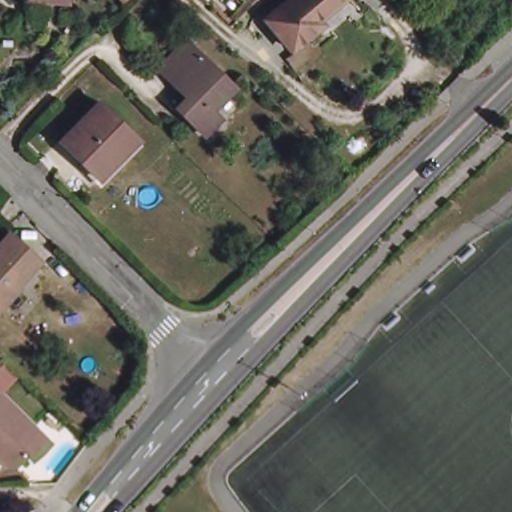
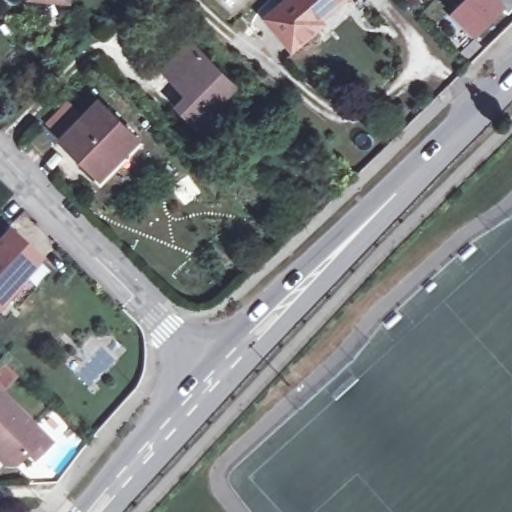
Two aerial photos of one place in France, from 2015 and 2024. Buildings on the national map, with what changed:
unchanged [(315,17),(319,23),(290,47),(265,16),(284,0),(334,0),(315,17)]
new [(463,0),(512,0),(512,6),(507,12),(501,7),(474,34),(470,38),(447,16),(452,12),(463,0)]
unchanged [(205,107),(214,115),(199,132),(172,105),(182,95),(153,67),(181,38),(227,84),(205,107)]
unchanged [(97,175),(60,138),(98,100),(135,137),(97,175)]
unchanged [(0,245),(7,237),(36,264),(0,303),(0,245)]
unchanged [(10,459),(0,447),(0,387),(45,433),(50,438),(37,452),(32,447),(20,459),(10,459)]

